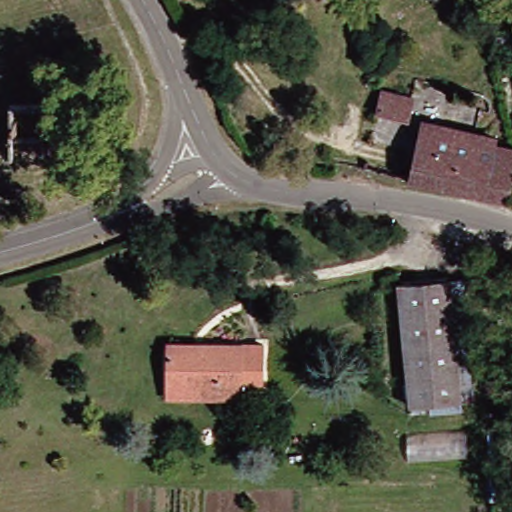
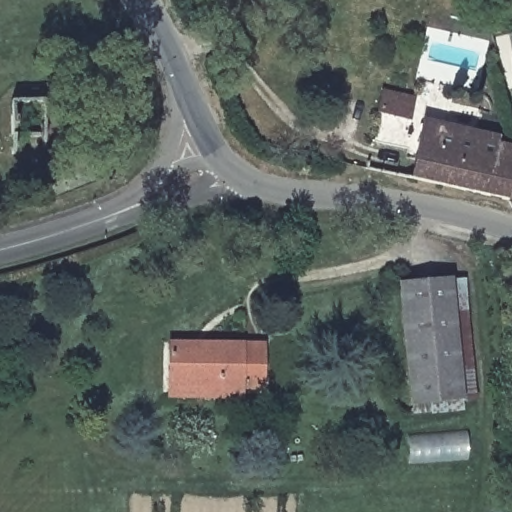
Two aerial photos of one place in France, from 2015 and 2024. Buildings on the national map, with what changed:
unchanged [(410,121),(375,112),(380,89),(415,98),(410,121)]
unchanged [(506,200),(415,180),(426,122),(497,138),(496,143),(512,147),(512,173),(506,200)]
unchanged [(430,403),(431,413),(413,416),(412,405),(408,406),(397,284),(450,280),(462,399),(430,403)]
unchanged [(476,401),(463,401),(462,399),(450,280),(465,281),(476,401)]
unchanged [(170,400),(170,390),(171,348),(171,341),(205,342),(270,344),(270,392),(248,391),(248,401),(170,400)]

